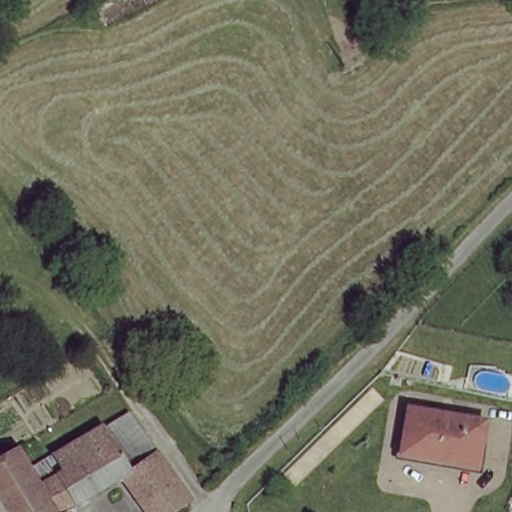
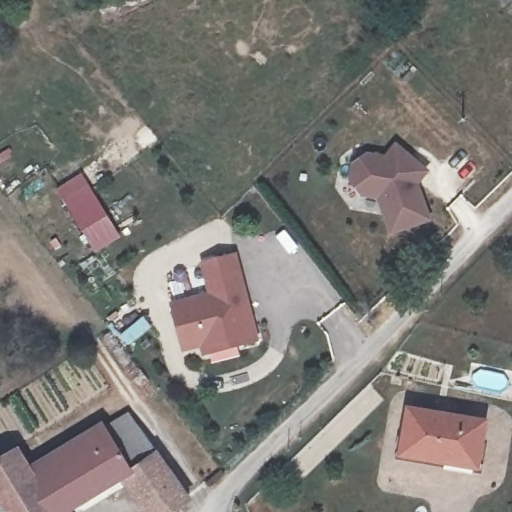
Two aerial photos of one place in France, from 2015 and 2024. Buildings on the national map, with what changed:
new [(361,197),(348,179),(351,163),(370,153),(385,155),(397,142),(430,171),(419,184),(432,221),(389,235),(377,200),(361,197)]
new [(89,242),(57,190),(81,174),(115,227),(89,242)]
new [(207,293),(199,262),(237,252),(260,341),(202,356),(200,348),(182,353),(169,302),(207,293)]
unchanged [(0,467),(28,451),(39,468),(130,412),(199,503),(192,509),(188,512),(159,512),(133,479),(80,512),(0,512),(0,467)]
unchanged [(486,430),(477,476),(403,462),(412,414),(486,430)]

